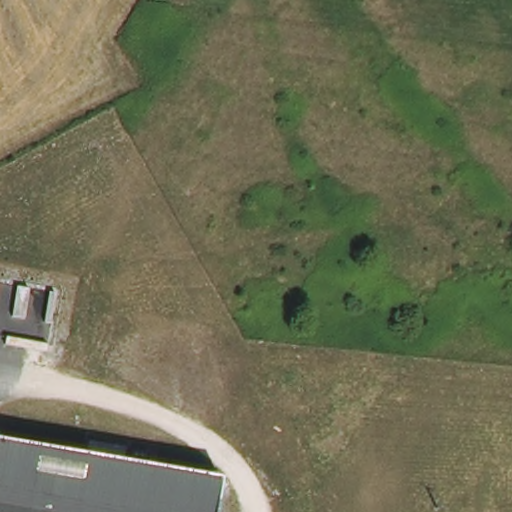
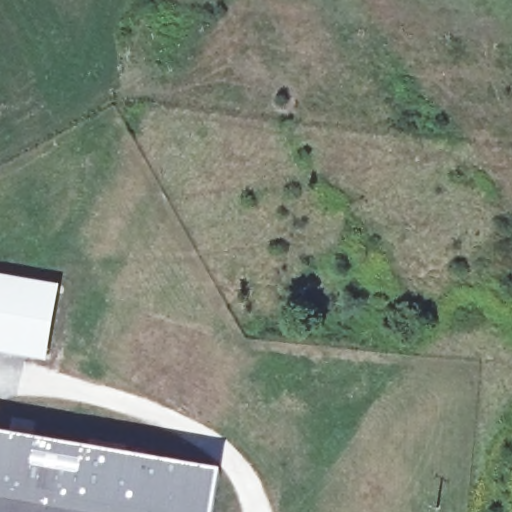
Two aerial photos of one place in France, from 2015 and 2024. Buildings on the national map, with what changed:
new [(61,286),(50,350),(0,341),(0,275),(61,286)]
unchanged [(83,448),(86,448),(89,436),(122,443),(120,454),(135,457),(151,460),(217,471),(210,512),(0,512),(0,502),(15,494),(0,471),(0,434),(83,448)]
unchanged [(15,494),(0,502),(0,471),(15,494)]

